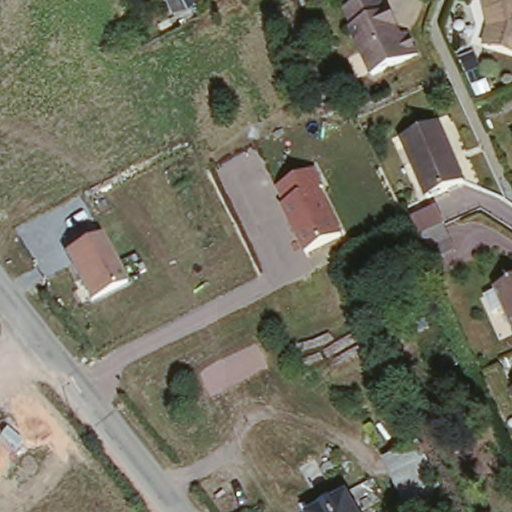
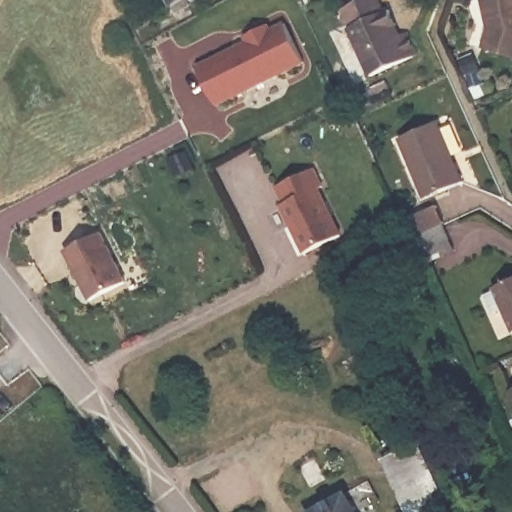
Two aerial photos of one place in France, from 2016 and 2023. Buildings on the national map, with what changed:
unchanged [(165,0),(199,0),(172,14),(165,0)]
unchanged [(512,0),(512,63),(483,54),(489,34),(483,4),(499,0),(512,0)]
unchanged [(344,17),(375,2),(383,20),(389,18),(396,33),(392,34),(397,45),(405,41),(415,64),(369,84),(349,37),(353,35),(344,17)]
new [(259,43),(257,37),(273,29),(275,34),(289,28),(309,67),(222,110),(202,70),(259,43)]
unchanged [(439,129),(464,187),(429,202),(403,145),(439,129)]
unchanged [(280,206),(284,204),(277,188),(314,169),(324,187),(319,188),(343,235),(305,254),(280,206)]
unchanged [(428,262),(423,251),(417,238),(422,235),(416,216),(442,204),(450,222),(442,226),(448,239),(453,249),(428,262)]
unchanged [(66,252),(103,233),(127,281),(90,300),(66,252)]
unchanged [(512,286),(512,328),(496,294),(512,286)]
unchanged [(407,334),(431,324),(434,332),(411,342),(407,334)]
unchanged [(420,446),(448,512),(408,512),(387,461),(420,446)]
unchanged [(371,490),(382,507),(372,512),(334,512),(371,490)]

